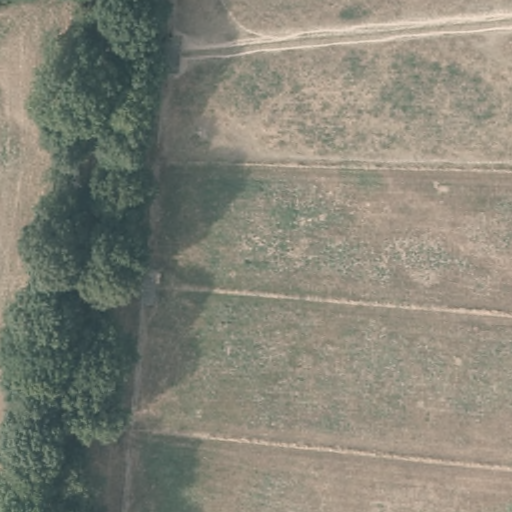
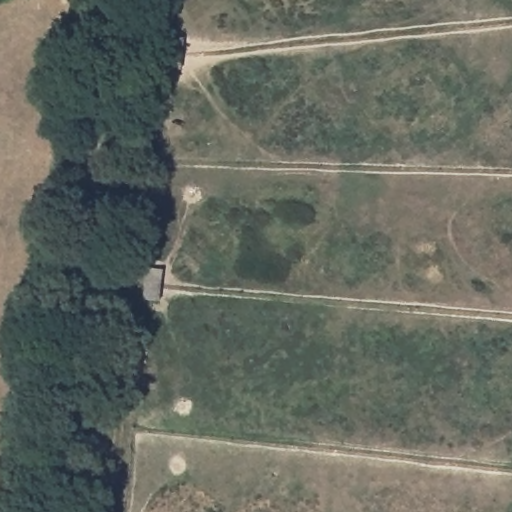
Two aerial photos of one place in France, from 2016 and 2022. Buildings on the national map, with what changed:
unchanged [(179,70),(165,70),(167,39),(184,40),(179,70)]
unchanged [(159,303),(142,302),(145,269),(162,270),(159,303)]

